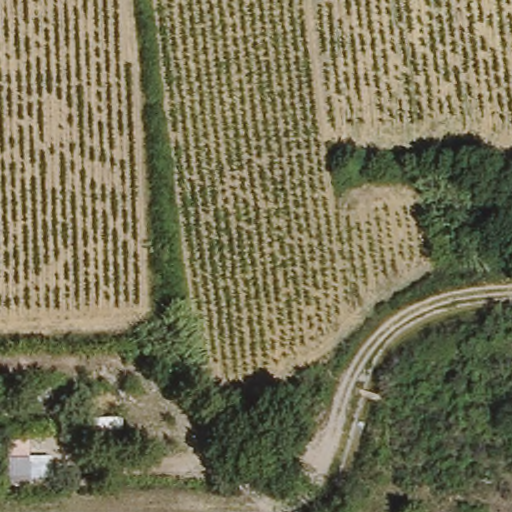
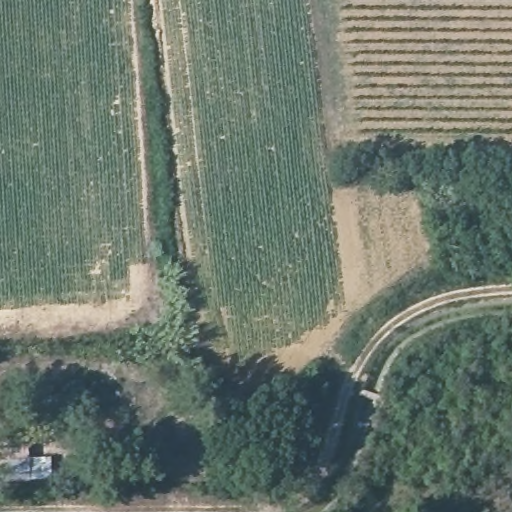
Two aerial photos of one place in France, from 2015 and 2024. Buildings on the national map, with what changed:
unchanged [(9,464),(9,457),(51,457),(50,481),(0,483),(0,465),(9,464)]

